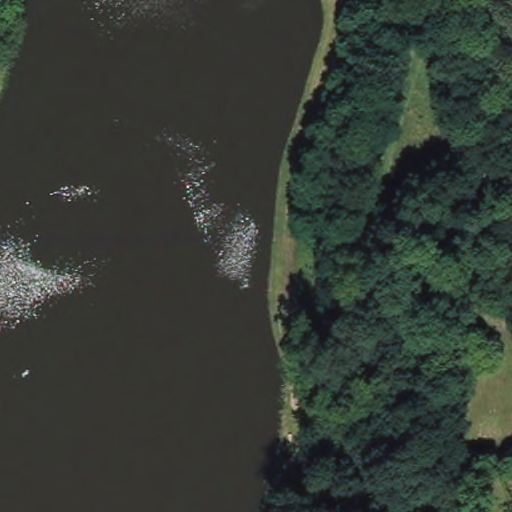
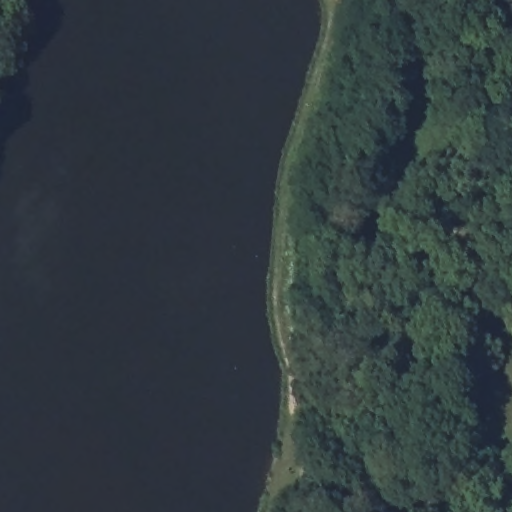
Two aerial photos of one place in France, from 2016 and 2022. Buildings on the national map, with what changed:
[]

